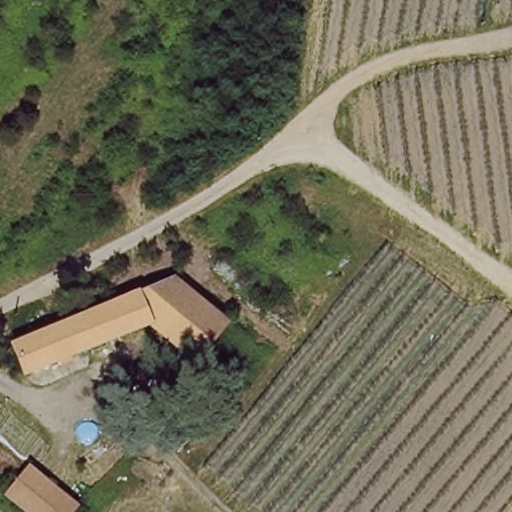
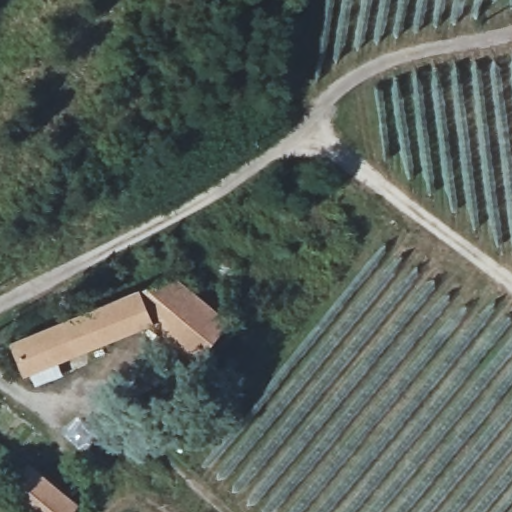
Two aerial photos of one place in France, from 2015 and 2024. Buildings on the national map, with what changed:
unchanged [(228,319),(196,358),(152,322),(30,373),(16,343),(174,273),(228,319)]
unchanged [(41,512),(11,487),(34,461),(80,498),(68,512),(41,512)]

